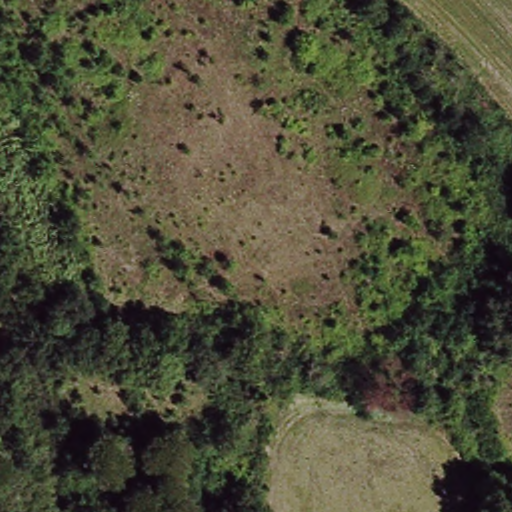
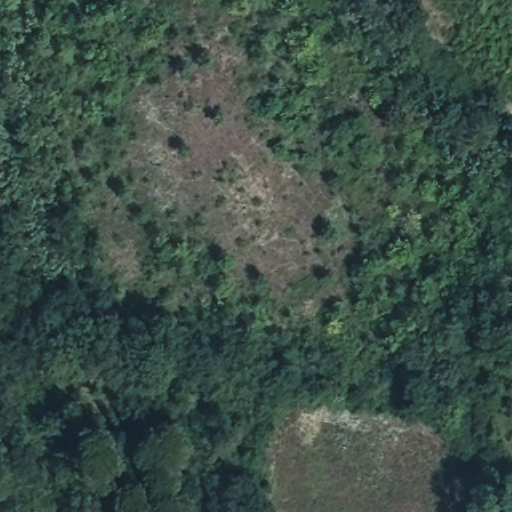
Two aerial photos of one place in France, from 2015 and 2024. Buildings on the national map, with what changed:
[]

